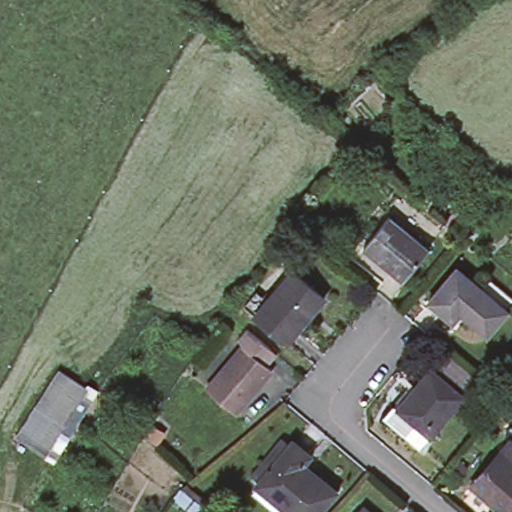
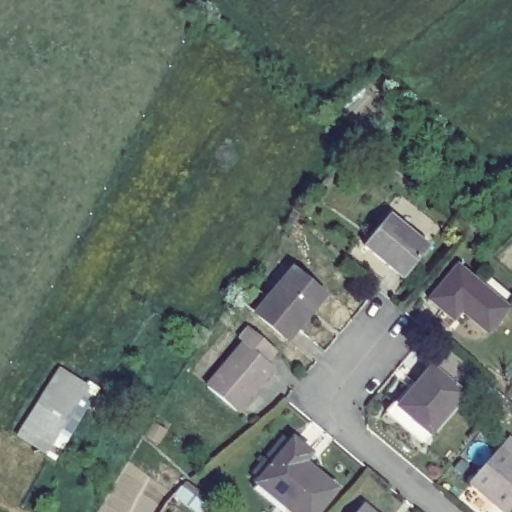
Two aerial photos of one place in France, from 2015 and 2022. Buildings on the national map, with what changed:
unchanged [(433,249),(409,280),(368,248),(393,218),(433,249)]
unchanged [(508,308),(488,333),(459,311),(451,322),(426,302),(454,265),(508,308)]
unchanged [(290,344),(259,316),(298,274),(329,301),(290,344)]
unchanged [(204,389),(240,345),(248,351),(258,339),(274,352),(264,364),(269,369),(233,412),(204,389)]
unchanged [(395,404),(401,409),(434,370),(440,362),(447,368),(472,389),(464,397),(432,436),(424,446),(387,414),(395,404)]
unchanged [(88,388),(46,456),(14,437),(57,367),(88,388)]
unchanged [(311,451),(301,463),(335,489),(317,512),(297,512),(259,482),(261,478),(254,471),(284,435),(291,441),(294,437),(311,451)]
unchanged [(503,452),(511,442),(512,443),(512,510),(510,512),(503,512),(473,486),(503,452)]
unchanged [(361,509),(365,512),(358,512),(361,509)]

